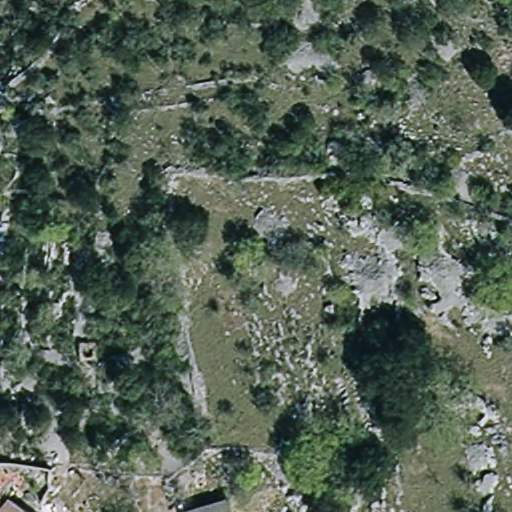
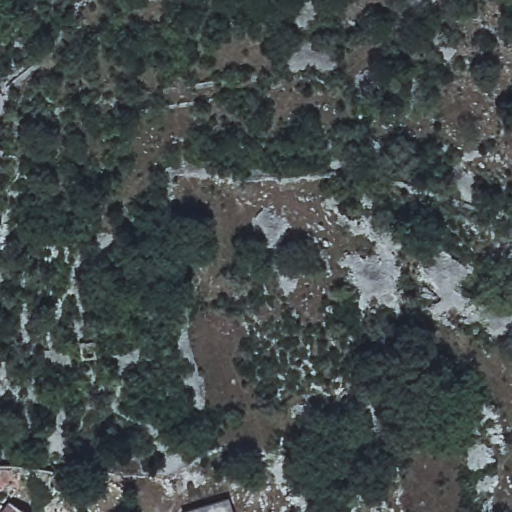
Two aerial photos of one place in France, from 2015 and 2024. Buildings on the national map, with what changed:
unchanged [(95,358),(80,359),(80,345),(93,344),(95,358)]
unchanged [(232,512),(191,512),(224,496),(232,512)]
unchanged [(20,512),(4,512),(6,506),(20,512)]

